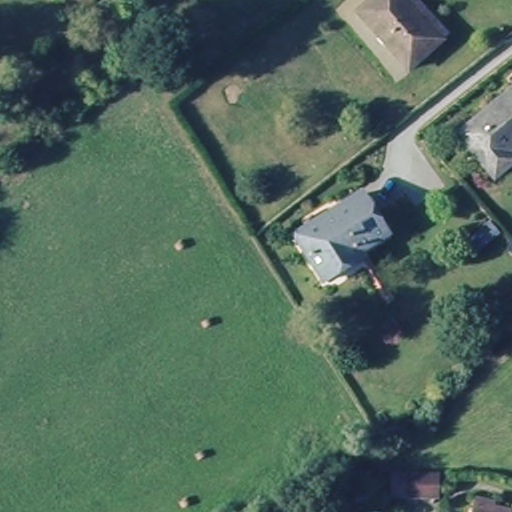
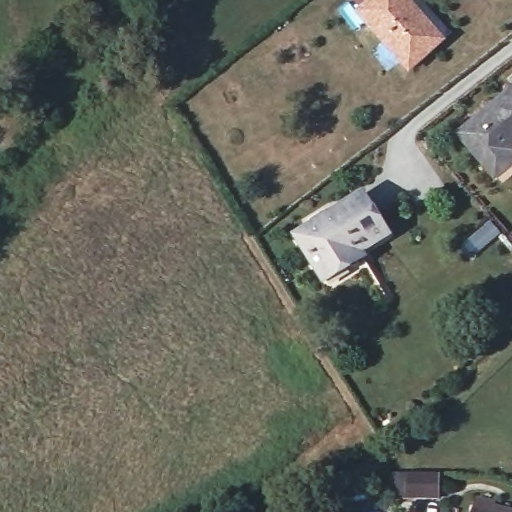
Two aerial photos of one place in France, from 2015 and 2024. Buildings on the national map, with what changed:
unchanged [(408,0),(440,32),(408,63),(360,10),(370,0),(408,0)]
unchanged [(495,179),(487,169),(459,135),(512,92),(512,149),(507,154),(512,160),(512,165),(495,179)]
unchanged [(326,277),(297,243),(345,203),(359,191),(371,207),(390,229),(364,250),(371,258),(352,272),(335,286),(326,277)]
unchanged [(407,473),(438,473),(440,498),(408,499),(407,473)]
unchanged [(477,499),(502,506),(501,512),(474,512),(477,499)]

